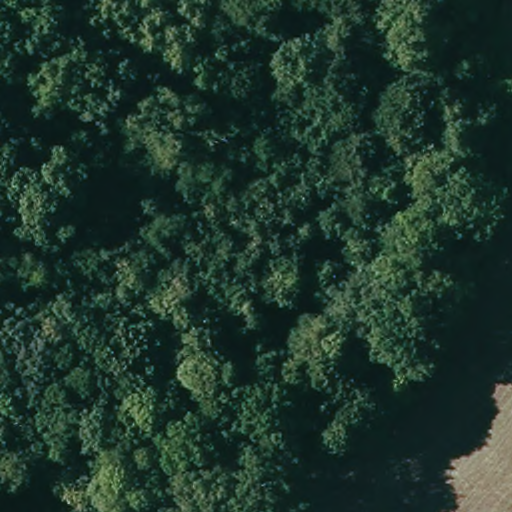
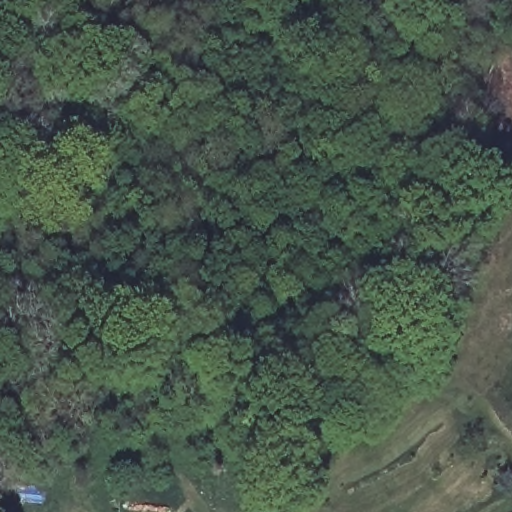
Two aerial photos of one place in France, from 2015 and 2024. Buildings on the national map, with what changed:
[]

